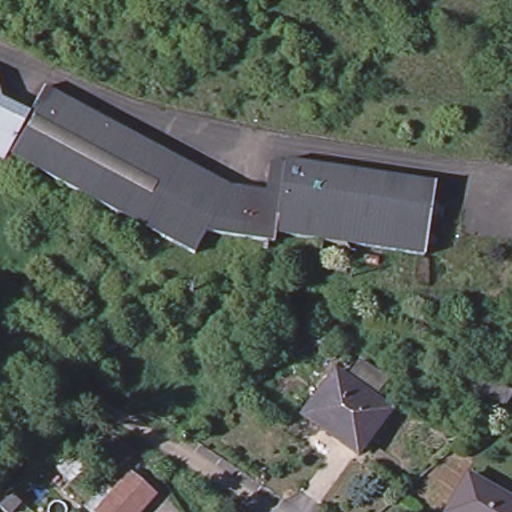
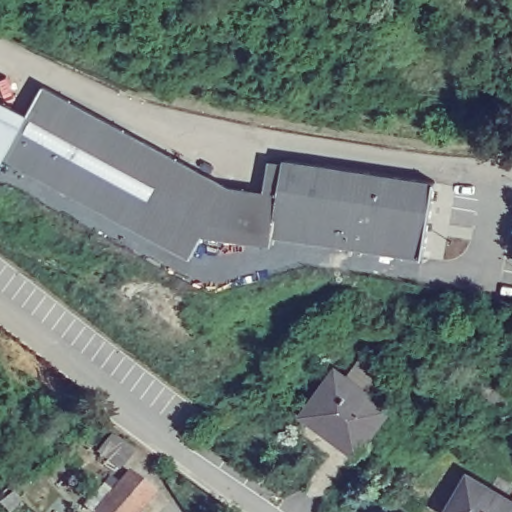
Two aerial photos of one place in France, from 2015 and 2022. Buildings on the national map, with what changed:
unchanged [(489,54),(499,27),(512,32),(512,61),(489,54)]
unchanged [(31,113),(8,153),(9,154),(2,165),(0,164),(0,83),(2,96),(31,113)]
unchanged [(9,154),(8,153),(31,113),(46,88),(121,132),(90,202),(9,154)]
unchanged [(423,261),(271,240),(269,251),(244,247),(202,241),(189,262),(101,209),(90,202),(121,132),(176,164),(224,191),(261,195),(264,170),(281,172),(281,167),(316,172),(433,187),(423,261)]
unchanged [(330,364),(384,404),(355,442),(336,429),(334,432),(299,406),(330,364)]
unchanged [(92,507),(101,497),(111,487),(113,484),(129,466),(141,477),(152,488),(143,499),(131,512),(98,512),(92,507)]
unchanged [(464,471),(512,501),(512,512),(443,512),(439,510),(464,471)]
unchanged [(4,512),(0,512),(0,501),(8,508),(4,512)]

